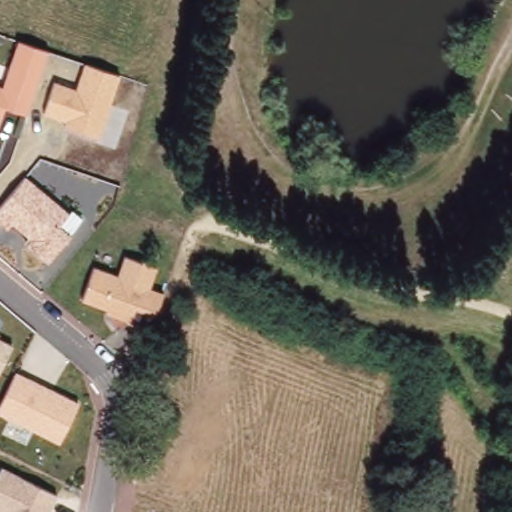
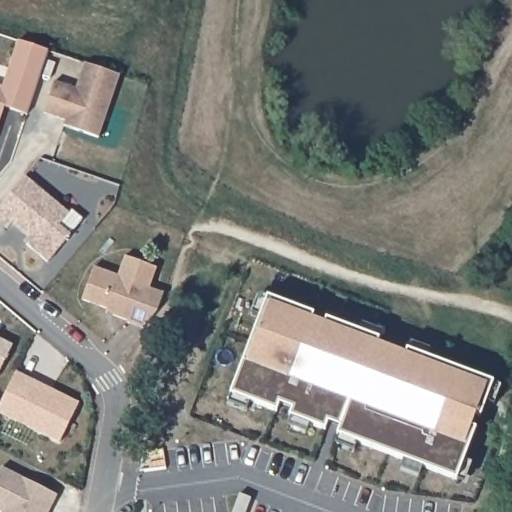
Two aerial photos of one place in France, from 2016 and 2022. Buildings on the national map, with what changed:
unchanged [(17,41),(46,52),(25,115),(4,108),(0,118),(0,84),(2,84),(17,41)]
unchanged [(66,121),(43,113),(53,82),(76,90),(85,64),(120,76),(99,139),(63,129),(66,121)]
unchanged [(27,237),(12,223),(7,230),(0,224),(0,207),(24,176),(67,212),(59,225),(70,236),(47,262),(25,243),(27,237)]
unchanged [(132,313),(129,322),(105,315),(107,307),(84,299),(93,268),(118,275),(124,257),(157,267),(151,288),(164,292),(158,319),(132,313)]
new [(267,296),(314,313),(312,318),(324,322),(326,318),(379,338),(366,373),(298,347),(287,377),(338,396),(325,430),(230,394),(267,296)]
unchanged [(0,373),(0,340),(14,347),(0,373)]
new [(350,400),(435,432),(446,403),(394,383),(407,349),(493,382),(481,417),(458,408),(453,420),(476,428),(457,480),(337,435),(350,400)]
unchanged [(0,405),(17,370),(79,400),(60,444),(0,415),(0,405)]
unchanged [(0,471),(2,467),(57,494),(48,512),(1,512),(0,512),(0,471)]

